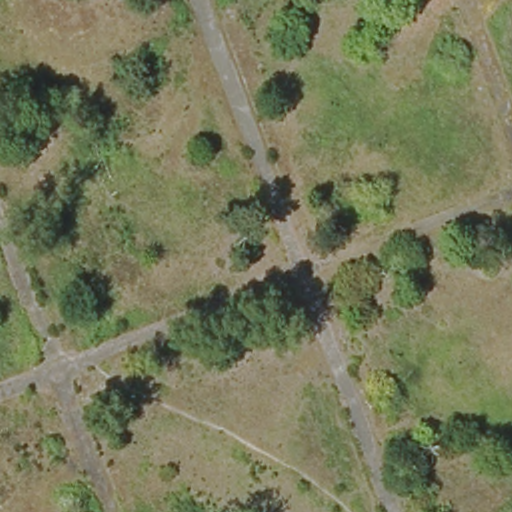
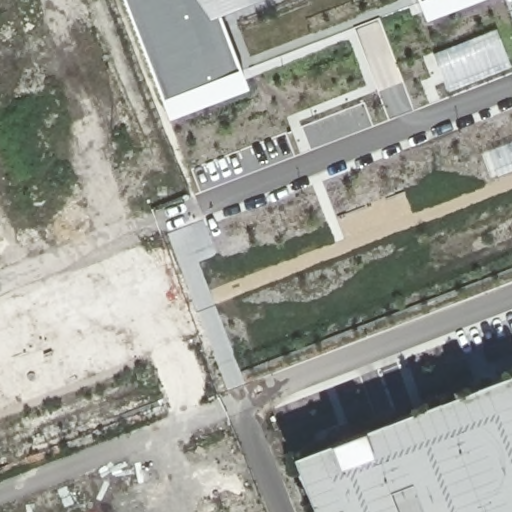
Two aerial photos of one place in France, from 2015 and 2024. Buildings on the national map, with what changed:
new [(240,93),(159,123),(113,0),(255,0),(209,18),(240,93)]
new [(409,0),(427,0),(411,6),(409,0)]
new [(283,455),(512,367),(512,512),(304,512),(283,455)]

